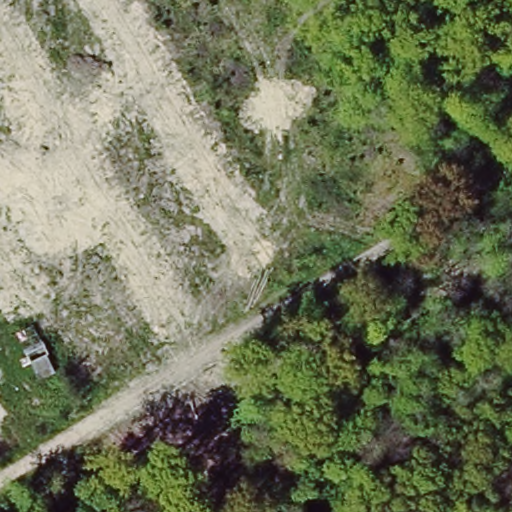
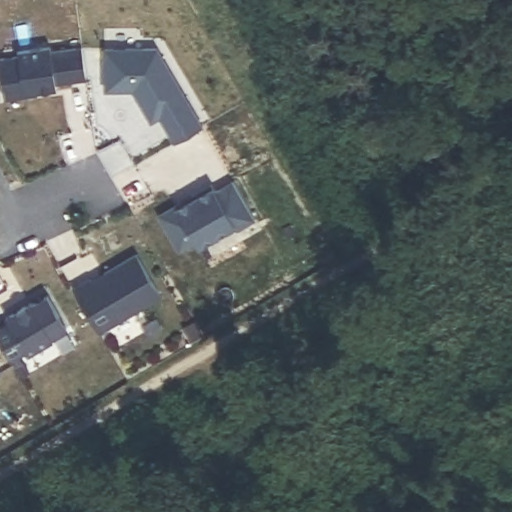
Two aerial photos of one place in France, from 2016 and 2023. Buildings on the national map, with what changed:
new [(55,83),(55,88),(37,91),(37,93),(5,98),(0,68),(0,56),(18,54),(18,49),(50,45),(51,50),(82,46),(87,78),(55,83)]
new [(173,143),(159,117),(151,122),(133,89),(103,89),(103,46),(156,45),(202,125),(173,143)]
new [(176,208),(176,210),(199,198),(201,200),(214,192),(216,194),(234,183),(256,221),(236,232),(234,229),(198,249),(194,244),(179,252),(159,217),(176,208)]
new [(92,277),(94,281),(106,274),(105,273),(138,253),(162,295),(100,331),(74,288),(92,277)]
new [(30,353),(28,349),(13,359),(0,337),(0,328),(11,321),(8,316),(34,301),(35,303),(50,294),(69,327),(54,336),(55,337),(30,353)]
demolished [(72,410),(42,426),(14,375),(30,367),(24,356),(38,348),(72,410)]
new [(0,372),(0,370),(1,371),(0,372)]

